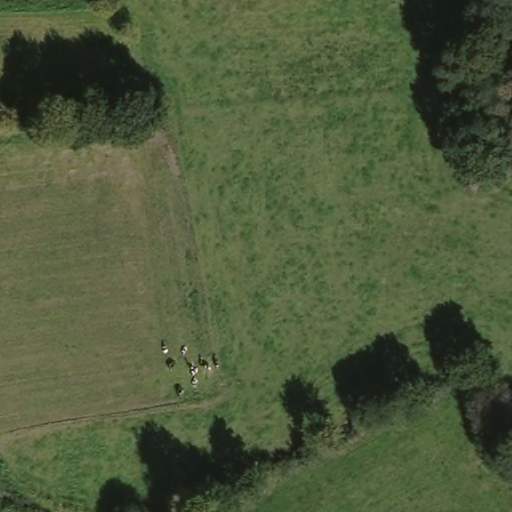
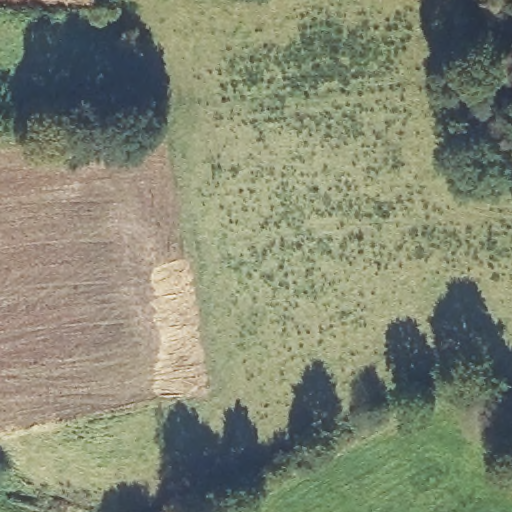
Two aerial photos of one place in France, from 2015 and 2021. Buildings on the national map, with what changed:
[]

